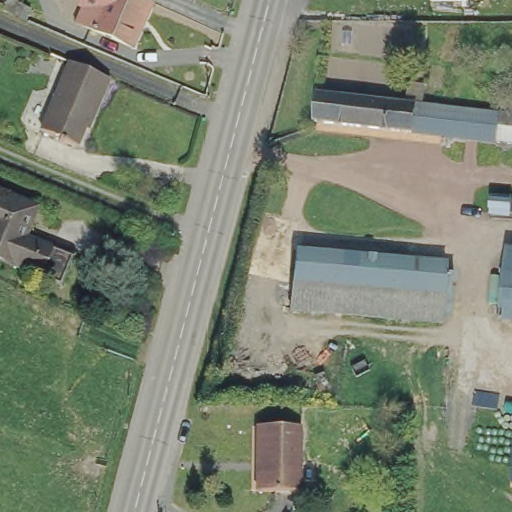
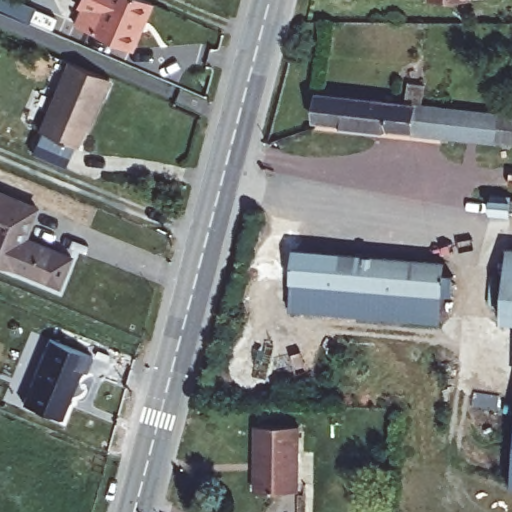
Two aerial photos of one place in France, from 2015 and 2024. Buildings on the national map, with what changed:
unchanged [(10,16),(0,12),(0,0),(14,0),(17,2),(42,12),(35,28),(10,16)]
unchanged [(125,59),(70,34),(77,20),(89,25),(100,0),(116,0),(146,14),(125,59)]
unchanged [(426,0),(463,0),(463,2),(425,2),(426,0)]
unchanged [(62,68),(107,87),(101,101),(93,97),(72,151),(37,137),(57,82),(62,68)]
unchanged [(510,141),(497,139),(308,117),(312,90),(500,112),(512,113),(512,141),(510,141)]
unchanged [(512,197),(512,215),(494,214),(496,196),(512,197)]
unchanged [(8,234),(37,245),(40,237),(62,246),(52,269),(0,248),(0,198),(20,206),(8,234)]
unchanged [(449,316),(442,325),(290,312),(296,251),(447,263),(445,274),(453,275),(449,316)]
unchanged [(512,268),(512,320),(507,320),(512,267),(512,268)]
new [(87,372),(82,370),(62,418),(23,402),(50,339),(93,357),(87,372)]
unchanged [(253,430),(297,431),(297,495),(252,495),(253,430)]

